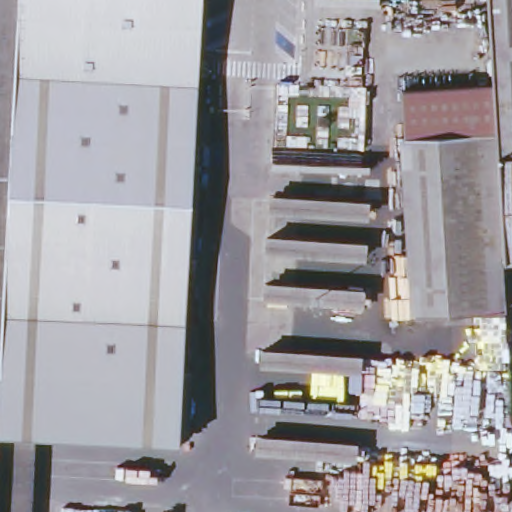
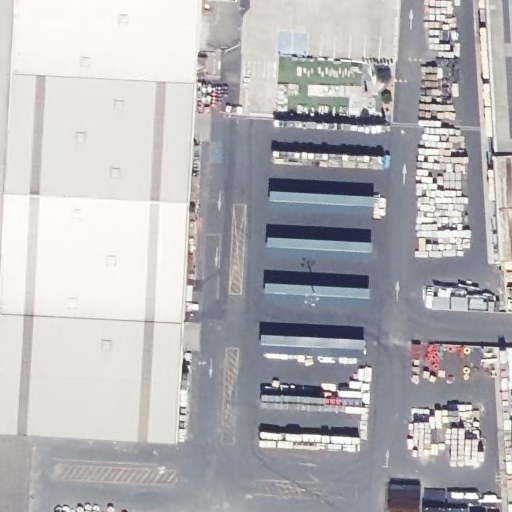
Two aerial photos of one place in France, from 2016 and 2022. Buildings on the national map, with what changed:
unchanged [(0,254),(0,0),(14,0),(0,254)]
unchanged [(195,56),(205,56),(204,75),(194,75),(178,377),(0,367),(0,254),(14,0),(198,0),(195,56)]
unchanged [(497,151),(493,82),(488,0),(512,0),(512,154),(497,154),(497,151)]
demolished [(493,82),(497,151),(404,155),(401,87),(493,82)]
demolished [(404,155),(497,151),(497,154),(503,257),(506,307),(413,313),(404,155)]
unchanged [(497,154),(512,154),(512,257),(503,257),(497,154)]
unchanged [(0,427),(0,367),(178,377),(174,438),(0,427)]
unchanged [(512,425),(512,512),(511,512),(507,426),(512,425)]

